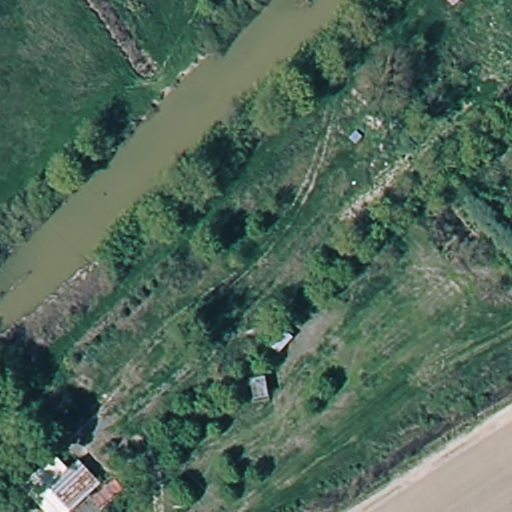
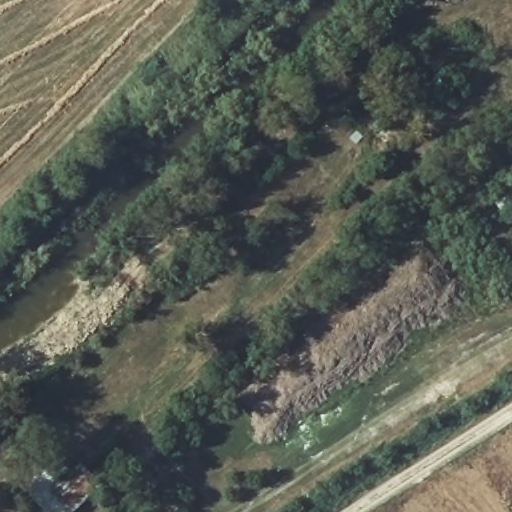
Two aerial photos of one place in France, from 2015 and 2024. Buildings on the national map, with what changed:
unchanged [(70,512),(46,512),(22,487),(55,456),(68,471),(78,461),(100,484),(70,512)]

